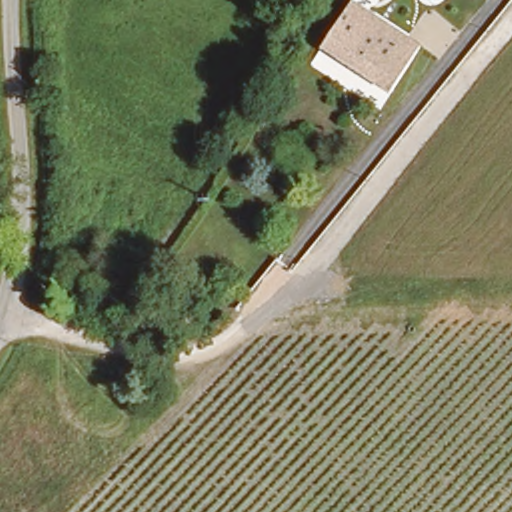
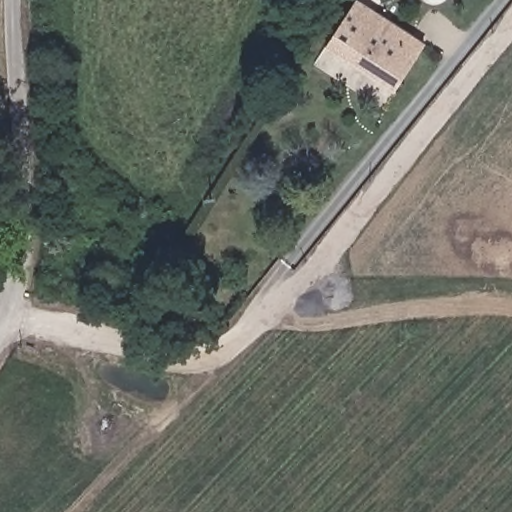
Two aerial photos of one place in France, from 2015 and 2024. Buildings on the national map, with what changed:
unchanged [(403,37),(419,46),(394,87),(325,48),(349,8),(403,37)]

